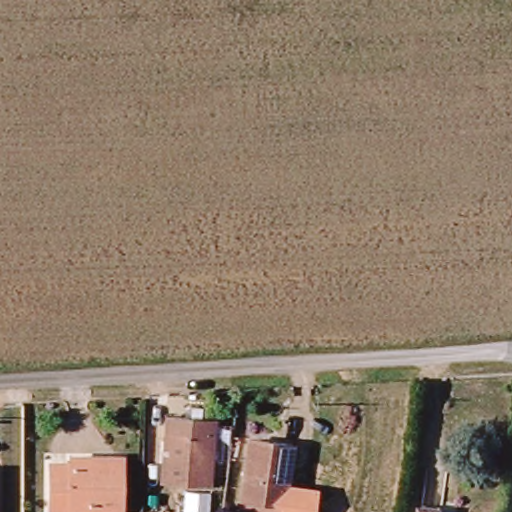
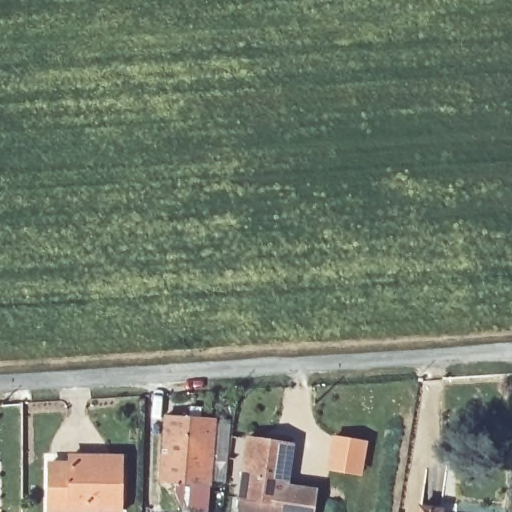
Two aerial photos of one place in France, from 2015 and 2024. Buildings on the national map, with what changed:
unchanged [(207,485),(161,480),(167,416),(190,419),(191,406),(205,407),(205,420),(214,421),(207,485)]
new [(332,434),(367,440),(361,476),(325,470),(332,434)]
unchanged [(229,455),(232,436),(291,445),(283,505),(239,499),(244,457),(229,455)]
unchanged [(47,508),(48,460),(73,460),(73,451),(118,451),(117,509),(47,508)]
unchanged [(313,512),(238,512),(239,499),(283,505),(286,483),(316,487),(313,512)]
unchanged [(434,512),(415,512),(415,509),(434,512)]

